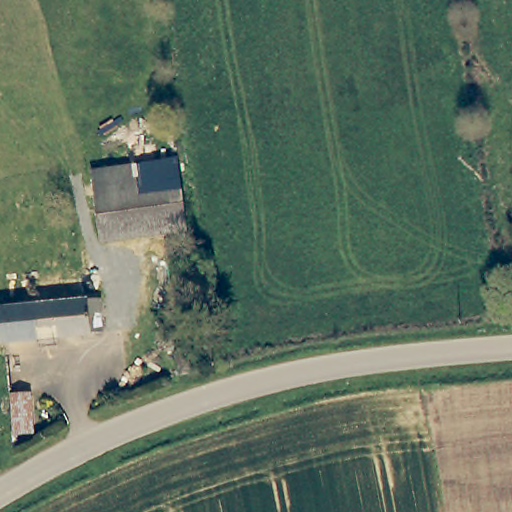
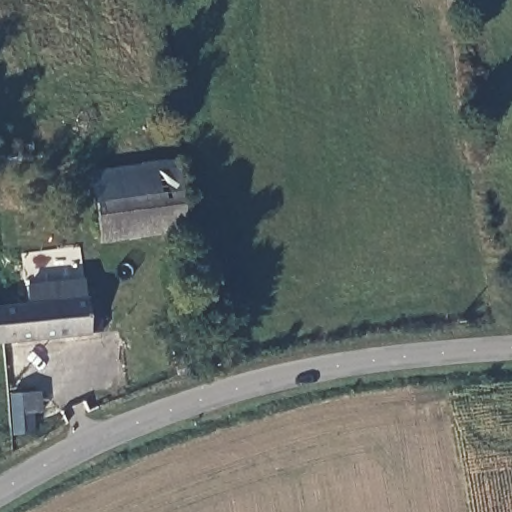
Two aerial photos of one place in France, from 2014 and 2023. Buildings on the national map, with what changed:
unchanged [(179,178),(94,189),(92,166),(175,153),(179,178)]
unchanged [(187,241),(173,243),(171,230),(101,238),(94,189),(179,178),(186,228),(187,238),(187,241)]
unchanged [(0,307),(35,302),(34,284),(85,279),(87,299),(101,298),(103,331),(3,342),(0,307)]
unchanged [(0,307),(3,342),(0,342),(0,307)]
unchanged [(172,351),(183,348),(187,370),(175,372),(172,351)]
unchanged [(15,431),(12,391),(33,390),(35,430),(15,431)]

